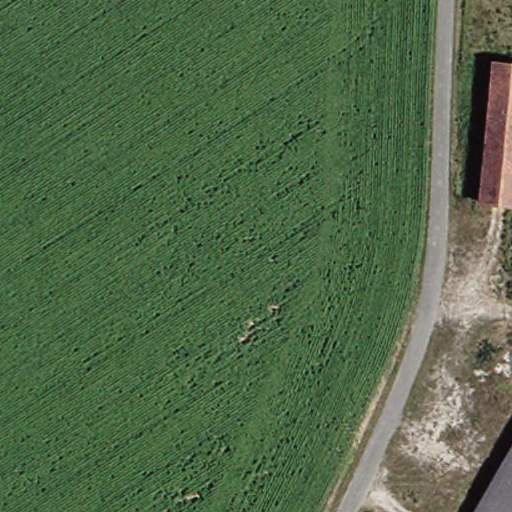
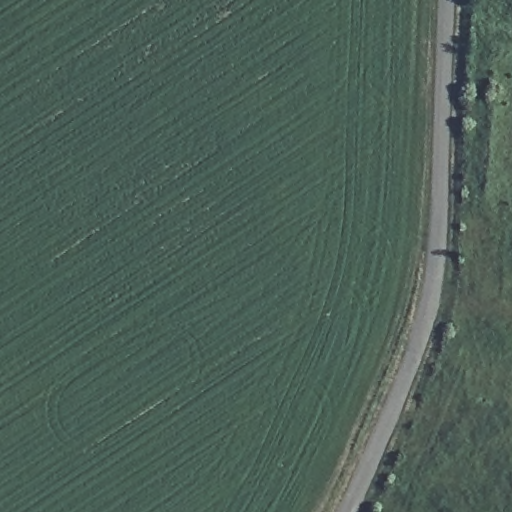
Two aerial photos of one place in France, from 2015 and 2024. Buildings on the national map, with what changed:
demolished [(481,201),(491,61),(512,62),(512,203),(481,201)]
demolished [(512,449),(512,512),(476,512),(512,449)]

